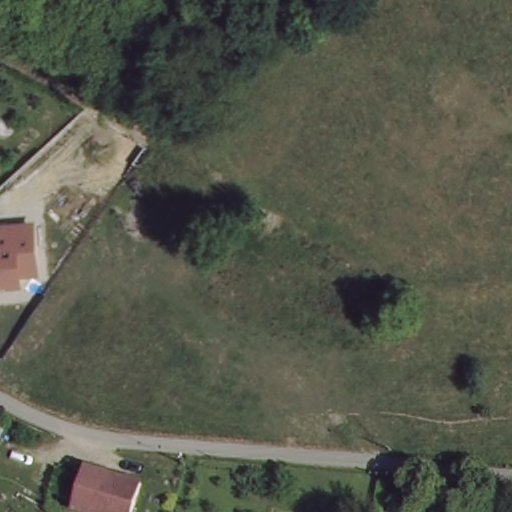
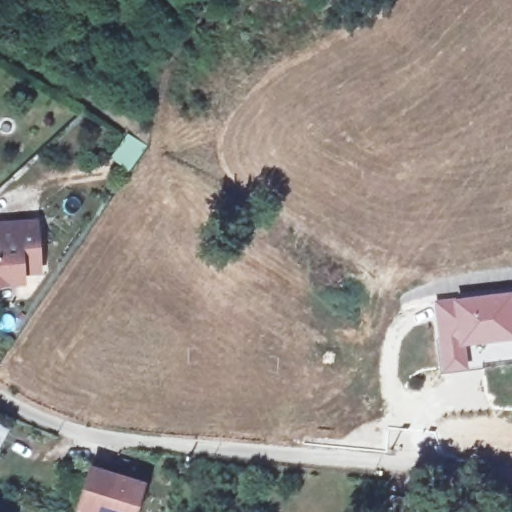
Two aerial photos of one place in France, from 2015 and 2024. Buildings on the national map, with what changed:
unchanged [(39,221),(41,277),(27,278),(26,285),(0,287),(0,223),(39,221)]
new [(467,369),(441,372),(434,299),(512,290),(512,338),(465,345),(467,369)]
unchanged [(11,431),(31,441),(20,461),(0,450),(0,424),(11,431)]
unchanged [(142,475),(132,512),(115,512),(78,502),(90,461),(142,475)]

